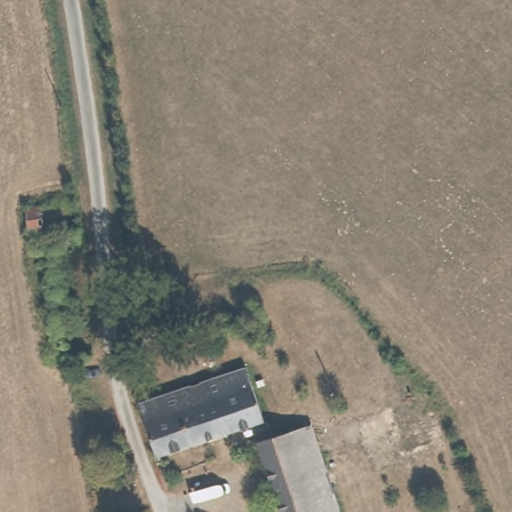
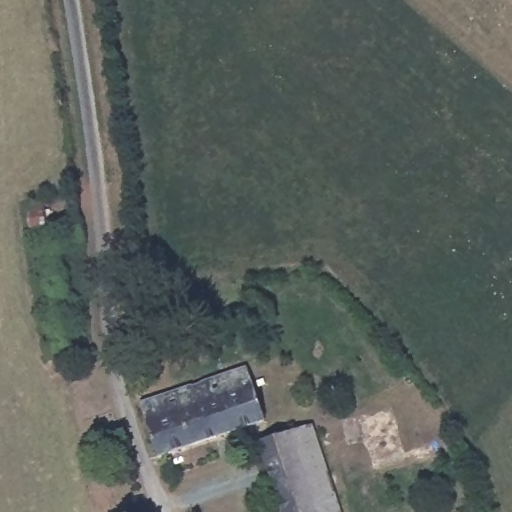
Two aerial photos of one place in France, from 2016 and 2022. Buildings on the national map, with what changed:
unchanged [(77,235),(25,241),(20,211),(74,204),(77,235)]
unchanged [(252,369),(266,418),(267,423),(159,459),(146,404),(252,369)]
unchanged [(278,512),(258,444),(312,426),(332,487),(340,512),(278,512)]

